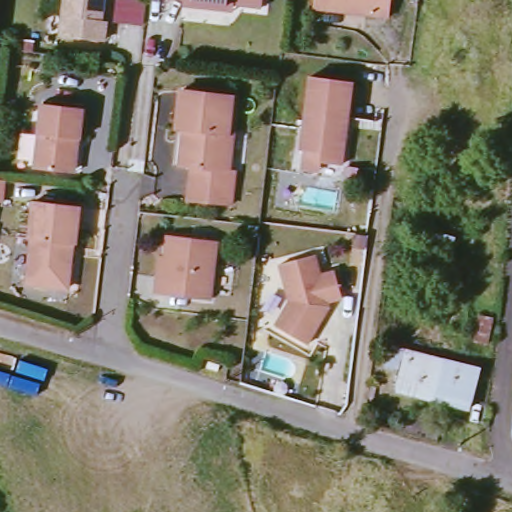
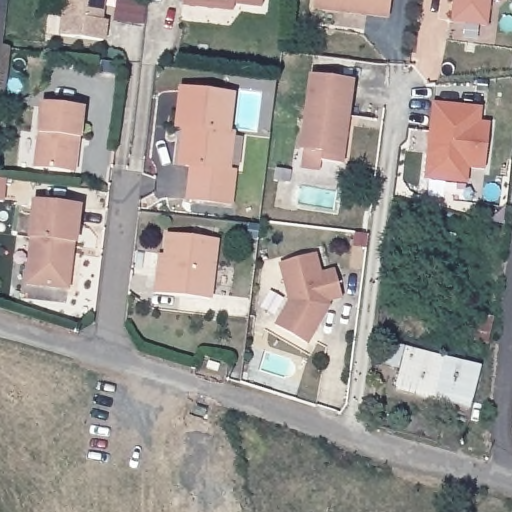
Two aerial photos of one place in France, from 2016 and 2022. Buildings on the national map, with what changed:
unchanged [(67,0),(102,0),(100,20),(104,21),(102,40),(71,37),(62,37),(65,16),(67,0)]
unchanged [(217,2),(196,0),(225,0),(225,4),(217,2)]
unchanged [(244,0),(266,0),(266,3),(244,0)]
unchanged [(391,0),(390,17),(315,10),(315,0),(391,0)]
new [(455,0),(490,0),(488,25),(454,22),(455,0)]
unchanged [(322,163),(323,150),(302,148),(304,125),(307,125),(312,75),(354,79),(345,165),(322,163)]
unchanged [(199,94),(240,98),(235,133),(240,134),(230,209),(189,204),(193,165),(190,164),(194,134),(185,133),(190,92),(199,94)]
unchanged [(85,107),(83,139),(77,139),(75,172),(38,169),(45,104),(85,107)]
new [(469,170),(467,184),(426,180),(433,104),(482,109),(481,123),(490,124),(485,170),(469,170)]
unchanged [(5,205),(0,205),(0,182),(7,183),(5,205)]
unchanged [(83,208),(80,246),(75,246),(70,290),(30,285),(39,204),(83,208)]
unchanged [(457,237),(450,276),(412,269),(420,229),(457,237)]
unchanged [(153,296),(155,277),(164,278),(168,235),(182,236),(175,299),(153,296)]
unchanged [(219,240),(210,303),(175,299),(182,236),(219,240)]
unchanged [(315,256),(320,275),(338,271),(344,300),(327,302),(317,338),(281,327),(287,299),(280,264),(315,256)]
unchanged [(405,374),(388,368),(395,345),(485,365),(475,412),(399,395),(405,374)]
unchanged [(225,360),(223,366),(212,363),(214,357),(225,360)]

